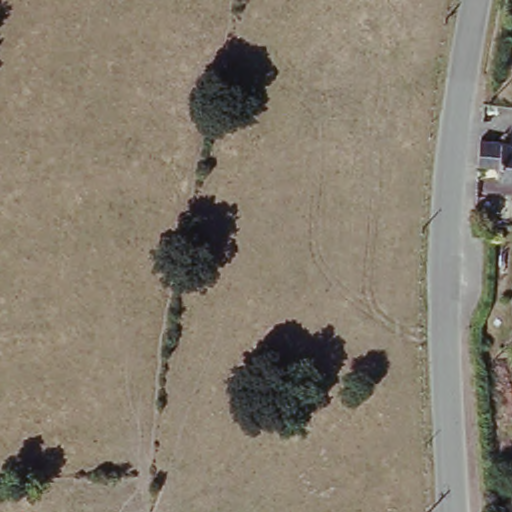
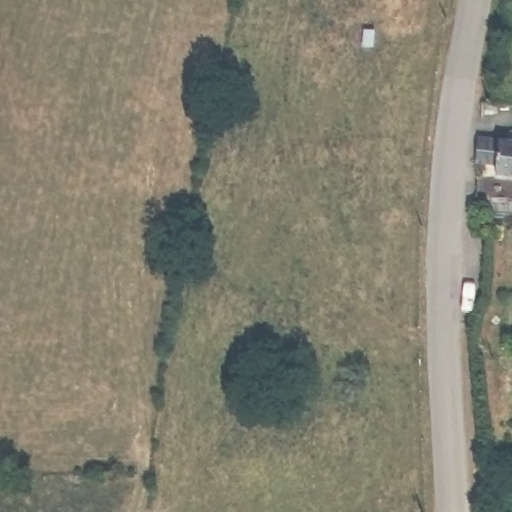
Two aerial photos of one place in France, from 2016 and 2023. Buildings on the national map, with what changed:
unchanged [(505,133),(512,133),(512,178),(492,177),(490,165),(471,165),(474,138),(505,141),(505,133)]

